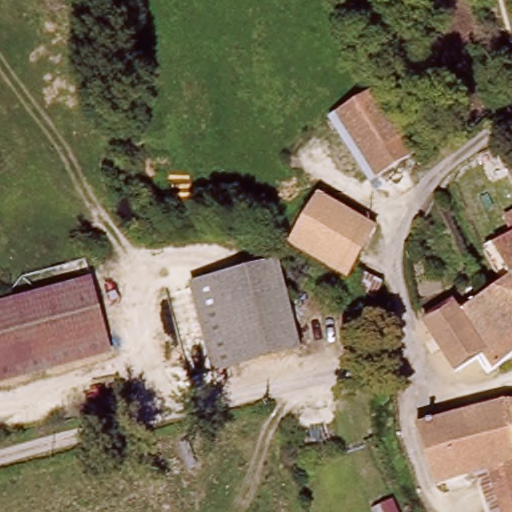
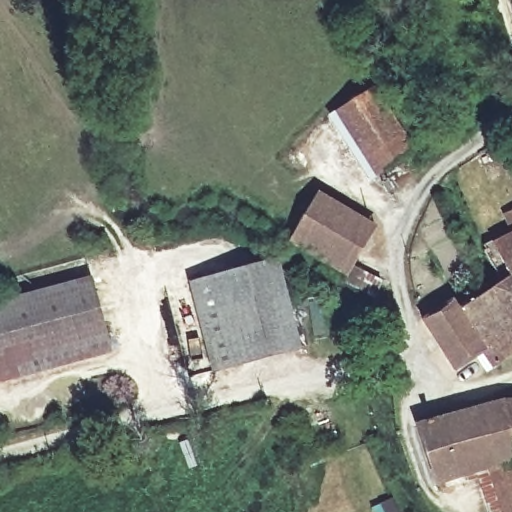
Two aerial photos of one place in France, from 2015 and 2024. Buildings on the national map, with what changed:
unchanged [(378,85),(414,153),(374,176),(338,112),(378,85)]
unchanged [(334,273),(292,237),(322,195),(377,234),(347,281),(334,273)]
unchanged [(502,209),(512,205),(512,221),(507,223),(502,209)]
unchanged [(484,243),(512,229),(512,306),(500,291),(509,286),(484,243)]
unchanged [(302,351),(212,374),(191,283),(277,261),(281,262),(302,351)]
unchanged [(111,343),(0,375),(0,305),(93,280),(111,343)]
unchanged [(489,339),(469,309),(489,298),(500,291),(512,306),(512,346),(499,354),(489,339)]
unchanged [(459,293),(469,309),(489,339),(484,343),(475,349),(455,357),(433,320),(432,308),(459,293)]
unchanged [(434,473),(422,420),(506,406),(512,434),(512,512),(508,512),(494,465),(434,473)]
unchanged [(512,406),(512,434),(506,406),(512,406)]

